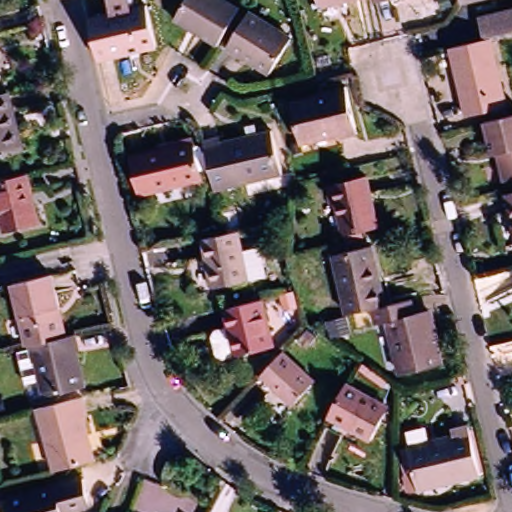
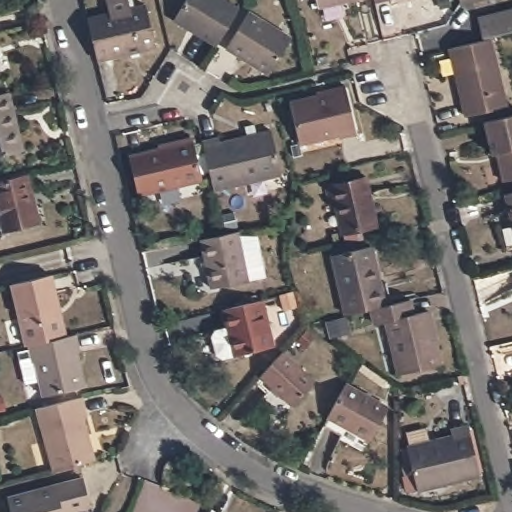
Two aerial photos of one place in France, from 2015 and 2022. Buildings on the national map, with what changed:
unchanged [(87,20),(111,14),(108,0),(129,0),(132,9),(147,5),(157,46),(97,61),(87,20)]
unchanged [(170,19),(181,0),(218,0),(234,10),(212,46),(170,19)]
unchanged [(320,7),(318,0),(350,0),(320,7)]
unchanged [(375,0),(387,0),(375,2),(375,0)]
unchanged [(461,14),(459,6),(458,0),(512,0),(512,2),(490,7),(461,14)]
unchanged [(512,10),(512,32),(480,39),(475,18),(512,10)]
unchanged [(223,46),(244,12),(287,38),(266,73),(223,46)]
unchanged [(503,107),(463,116),(447,48),(488,38),(503,107)]
unchanged [(336,136),(335,132),(296,142),(287,103),(325,94),(325,90),(342,85),(353,132),(336,136)]
unchanged [(19,153),(0,158),(0,97),(9,94),(14,116),(23,152),(19,153)]
unchanged [(495,159),(497,159),(495,152),(489,154),(481,122),(512,115),(512,178),(500,181),(495,159)]
unchanged [(216,138),(217,142),(242,136),(240,126),(250,124),(252,134),(268,130),(279,174),(211,190),(199,142),(216,138)]
unchanged [(137,196),(127,156),(190,141),(200,180),(137,196)]
unchanged [(39,224),(5,233),(0,212),(0,180),(27,173),(39,224)]
unchanged [(332,200),(328,201),(324,184),(362,175),(373,223),(359,227),(361,236),(342,241),(340,231),(332,200)]
unchanged [(512,197),(512,218),(507,198),(512,197)]
unchanged [(222,235),(235,232),(245,279),(209,288),(199,240),(222,235)]
unchanged [(329,254),(367,244),(372,261),(367,262),(372,281),(376,280),(382,303),(368,306),(343,312),(329,254)]
unchanged [(47,276),(62,336),(30,344),(23,345),(8,285),(47,276)]
unchanged [(409,311),(425,307),(439,365),(397,375),(384,319),(372,322),(368,306),(382,303),(406,297),(409,311)]
unchanged [(247,302),(264,298),(275,344),(239,353),(225,356),(219,353),(214,334),(218,327),(232,324),(227,307),(247,302)]
unchanged [(79,349),(76,350),(85,385),(44,395),(36,359),(33,360),(30,344),(62,336),(75,333),(79,349)]
unchanged [(280,349),(311,377),(290,401),(258,374),(280,349)]
unchanged [(377,422),(367,441),(325,419),(344,385),(380,406),(385,408),(377,422)]
unchanged [(32,408),(77,397),(82,416),(77,417),(89,460),(48,471),(32,408)]
unchanged [(414,485),(404,443),(450,433),(449,426),(465,423),(476,470),(414,485)]
unchanged [(11,512),(7,497),(84,478),(90,508),(74,512),(11,512)]

